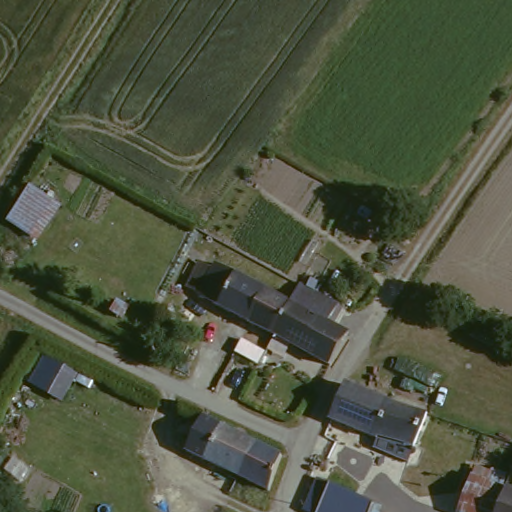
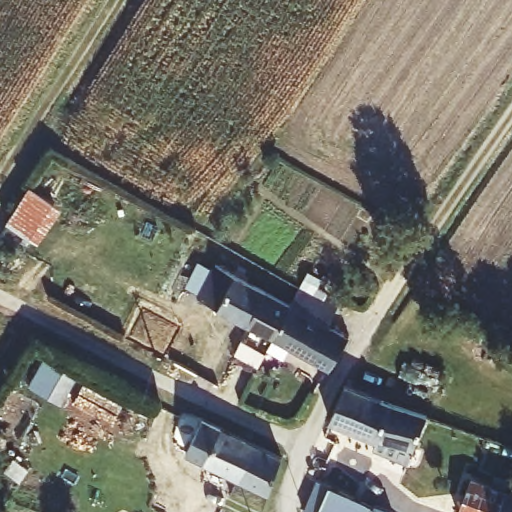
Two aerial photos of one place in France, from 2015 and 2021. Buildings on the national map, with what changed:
unchanged [(35,248),(8,229),(43,177),(71,198),(35,248)]
unchanged [(334,365),(275,333),(222,304),(204,295),(223,262),(241,272),(293,301),(300,283),(303,282),(340,302),(329,321),(350,332),(334,365)]
unchanged [(80,374),(63,406),(26,385),(43,356),(80,374)]
unchanged [(361,381),(438,413),(424,443),(395,432),(394,435),(341,414),(356,380),(361,381)]
unchanged [(259,442),(243,473),(220,461),(215,468),(189,453),(209,418),(259,442)]
unchanged [(289,458),(272,488),(243,473),(259,442),(289,458)]
unchanged [(457,504),(470,469),(507,484),(494,512),(473,512),(457,504)]
unchanged [(372,505),(369,512),(318,512),(303,504),(315,475),(372,505)]
unchanged [(507,484),(512,486),(512,512),(494,512),(507,484)]

